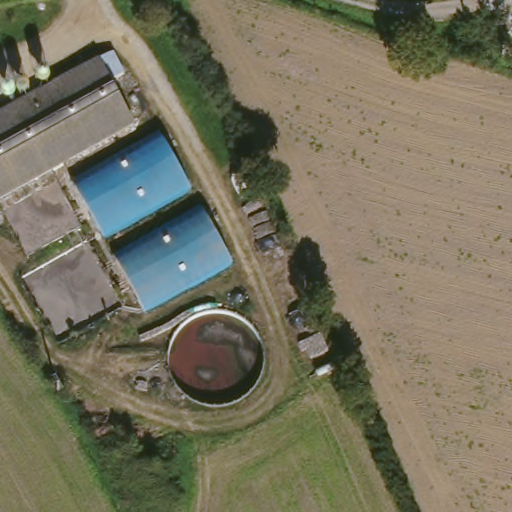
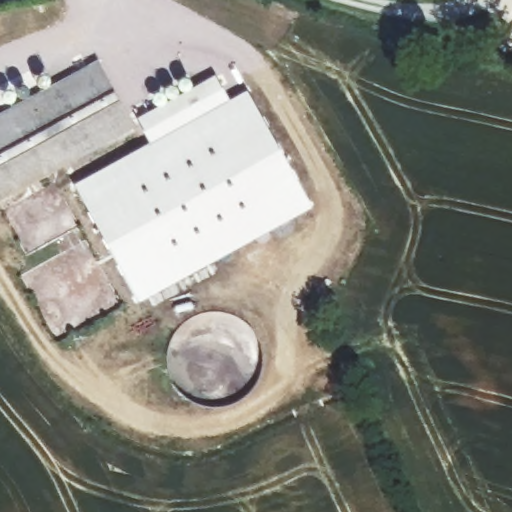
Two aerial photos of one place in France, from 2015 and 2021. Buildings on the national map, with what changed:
unchanged [(133,123),(0,197),(0,114),(98,59),(133,123)]
new [(213,75),(227,100),(248,90),(309,205),(138,301),(74,185),(150,140),(139,117),(213,75)]
demolished [(158,130),(189,191),(98,240),(66,180),(158,130)]
demolished [(235,265),(144,313),(113,252),(204,204),(235,265)]

